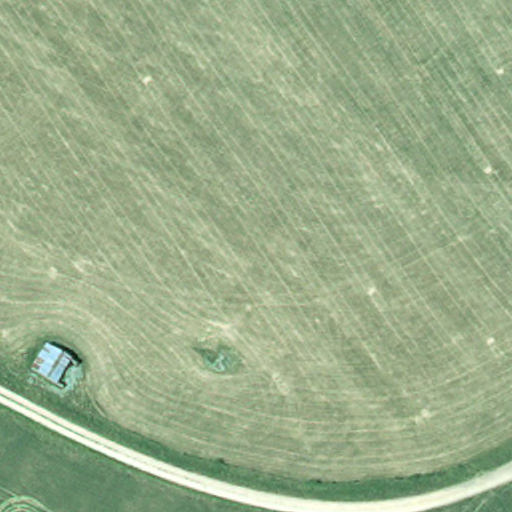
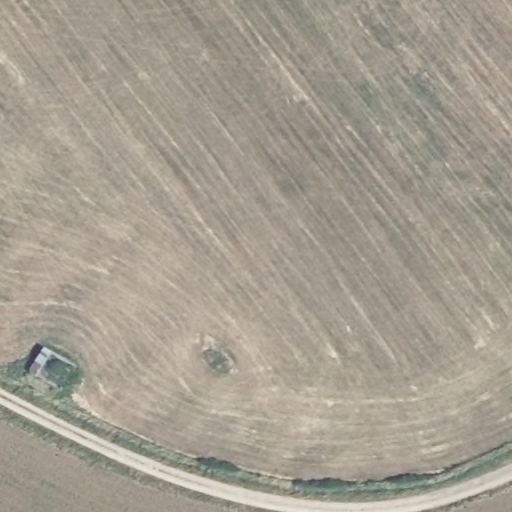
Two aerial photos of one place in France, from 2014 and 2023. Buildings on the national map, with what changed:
unchanged [(58,382),(27,362),(42,337),(73,357),(58,382)]

